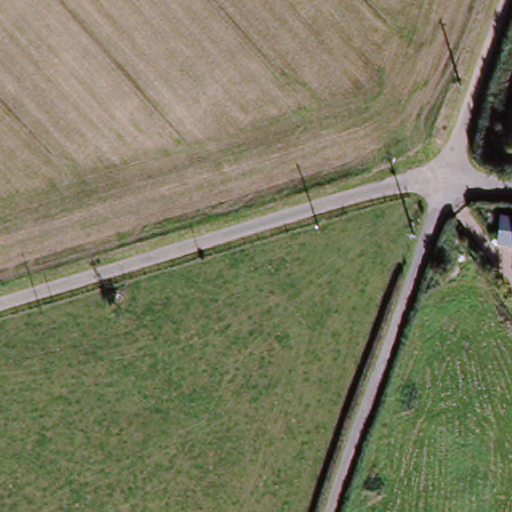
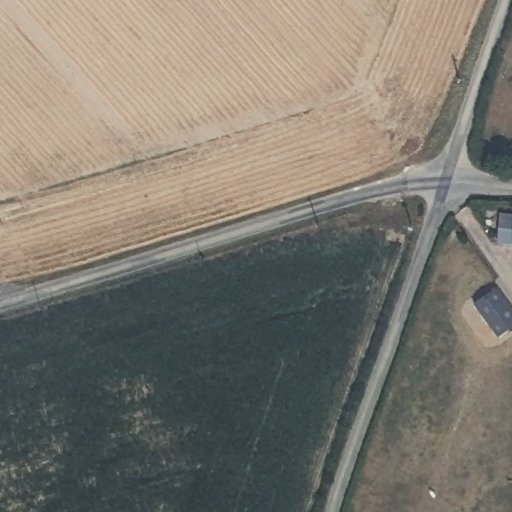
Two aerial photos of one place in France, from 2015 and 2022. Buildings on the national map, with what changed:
unchanged [(498,150),(512,106),(512,154),(498,150)]
unchanged [(502,241),(506,216),(512,217),(512,242),(502,241)]

